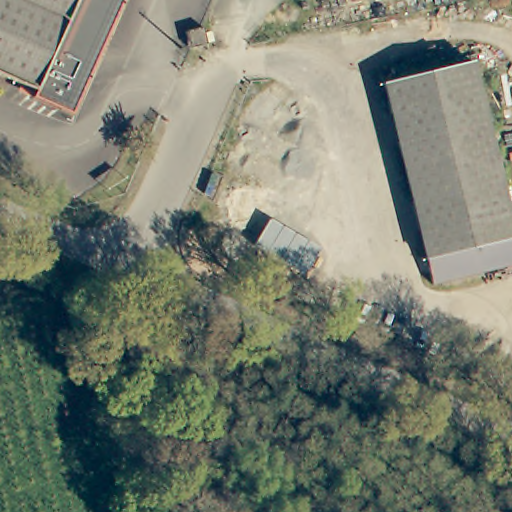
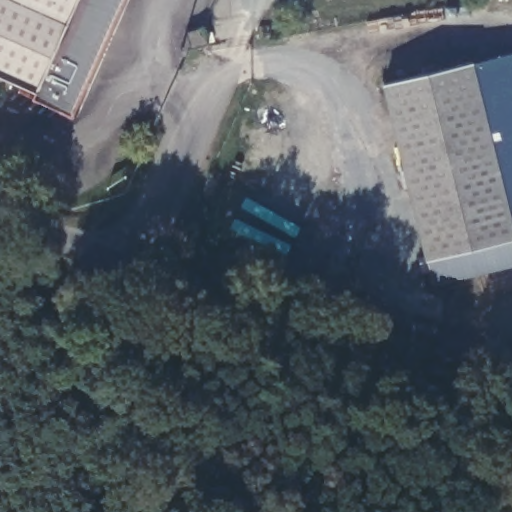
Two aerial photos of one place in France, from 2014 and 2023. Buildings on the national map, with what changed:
unchanged [(33,90),(0,75),(0,0),(116,0),(103,29),(92,54),(73,97),(66,112),(52,106),(29,96),(33,90)]
new [(474,64),(512,51),(512,207),(474,64)]
unchanged [(384,86),(474,64),(512,207),(512,268),(436,288),(384,86)]

